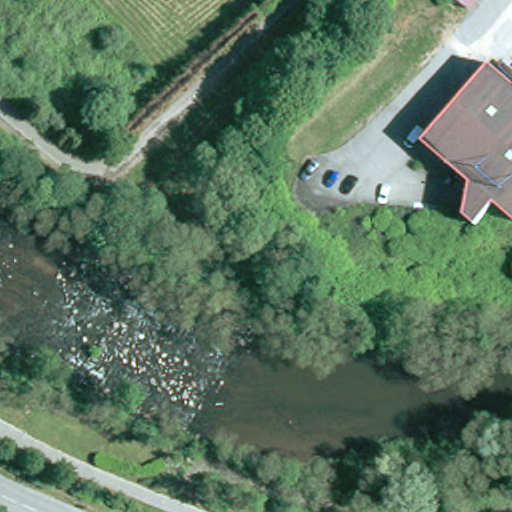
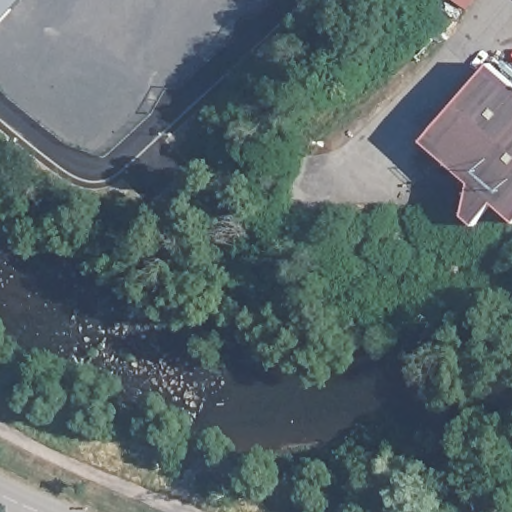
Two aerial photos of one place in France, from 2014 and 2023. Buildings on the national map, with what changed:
new [(0,0),(21,0),(0,23),(0,0)]
unchanged [(460,0),(479,0),(472,9),(460,0)]
unchanged [(500,204),(481,226),(469,216),(471,182),(424,141),(492,64),(512,81),(512,214),(500,204)]

